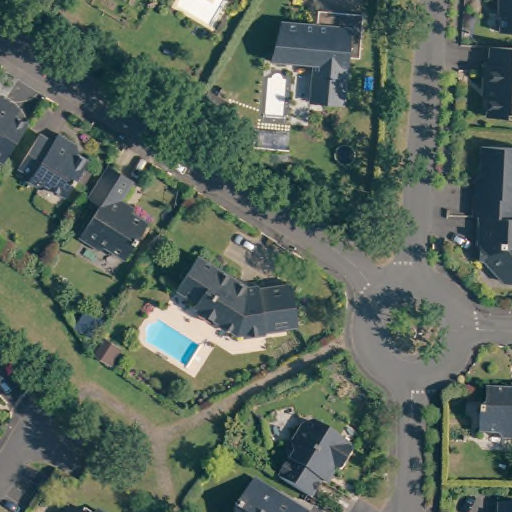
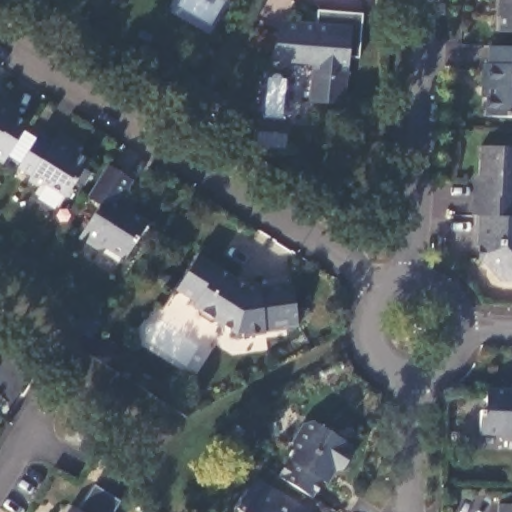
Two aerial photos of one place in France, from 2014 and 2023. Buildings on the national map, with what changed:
unchanged [(496,30),(497,0),(512,0),(512,31),(496,30)]
unchanged [(360,59),(348,58),(344,105),(305,101),(309,64),(266,60),(270,21),(320,25),(321,11),(333,11),(363,14),(360,59)]
unchanged [(510,121),(483,120),(485,89),(480,89),(481,68),(486,68),(487,50),(512,51),(512,118),(510,121)]
unchanged [(20,133),(5,156),(1,163),(0,162),(0,98),(2,100),(4,101),(6,103),(8,105),(10,107),(10,111),(10,115),(25,125),(20,133)]
unchanged [(79,145),(81,155),(90,161),(68,197),(49,185),(43,186),(32,180),(34,176),(20,168),(42,135),(55,143),(60,134),(79,145)]
unchanged [(465,193),(470,193),(473,144),(512,146),(512,216),(476,215),(465,214),(465,193)]
unchanged [(87,193),(105,165),(130,181),(115,205),(145,223),(122,259),(105,247),(96,249),(77,237),(100,201),(87,193)]
unchanged [(503,284),(481,258),(482,245),(475,245),(476,215),(512,216),(512,284),(503,284)]
unchanged [(255,284),(255,282),(255,283),(289,278),(295,321),(271,325),(271,322),(262,323),(262,328),(240,332),(240,328),(235,329),(215,317),(212,318),(208,319),(196,311),(195,305),(190,302),(194,297),(174,285),(195,251),(234,275),(231,278),(235,281),(244,286),(255,284)]
unchanged [(106,340),(124,350),(111,369),(95,358),(106,340)]
unchanged [(502,442),(497,437),(477,436),(478,414),(483,409),(484,393),(512,394),(512,442),(502,442)]
unchanged [(326,479),(315,496),(282,475),(297,451),(295,440),(306,422),(317,420),(355,444),(356,451),(346,468),(339,470),(331,482),(326,479)]
unchanged [(90,436),(85,445),(70,434),(75,426),(90,436)]
unchanged [(247,492),(252,483),(275,496),(300,512),(234,512),(247,492)]
unchanged [(495,508),(512,508),(512,512),(495,512),(495,508)]

